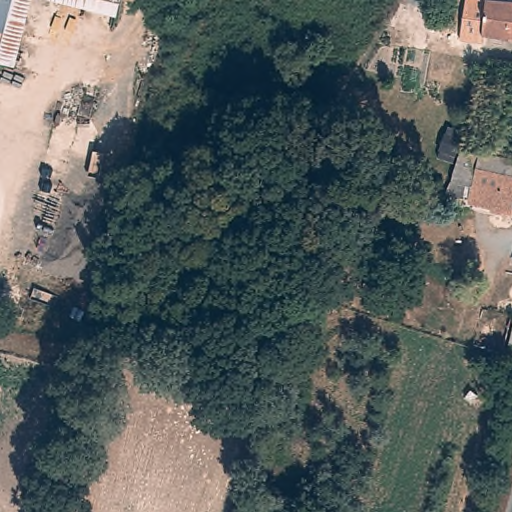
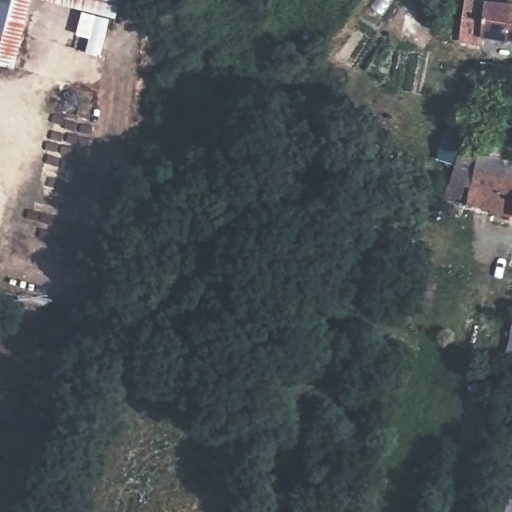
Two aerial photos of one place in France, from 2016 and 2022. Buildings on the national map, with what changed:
unchanged [(4,79),(0,78),(0,0),(29,0),(4,79)]
unchanged [(114,11),(78,0),(117,0),(114,11)]
unchanged [(499,9),(512,10),(512,45),(493,43),(492,50),(468,48),(473,7),(499,9)]
unchanged [(512,163),(512,212),(445,194),(462,145),(512,163)]
unchanged [(505,330),(506,317),(512,318),(512,331),(505,330)]

